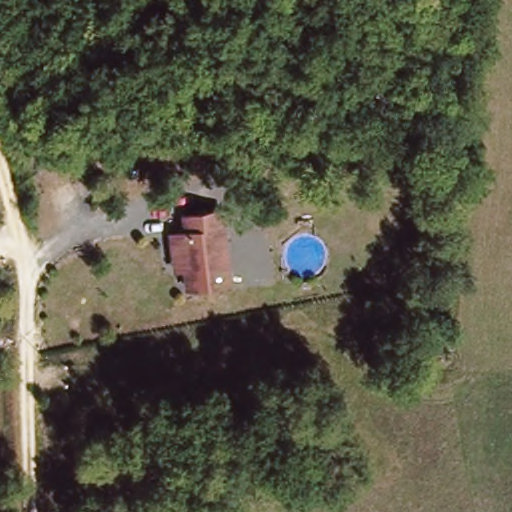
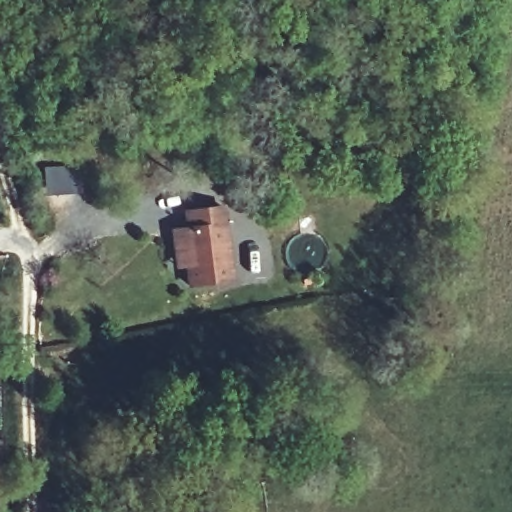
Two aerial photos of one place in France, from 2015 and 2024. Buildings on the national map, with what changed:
new [(78,191),(48,193),(45,168),(78,167),(78,191)]
unchanged [(193,287),(189,268),(179,267),(174,233),(187,232),(194,231),(191,215),(226,211),(228,223),(234,281),(193,287)]
unchanged [(313,236),(319,247),(318,256),(314,263),(308,267),(303,268),(294,268),(287,263),(283,258),(281,253),(282,244),(286,237),(292,233),(297,231),(306,232),(313,236)]

